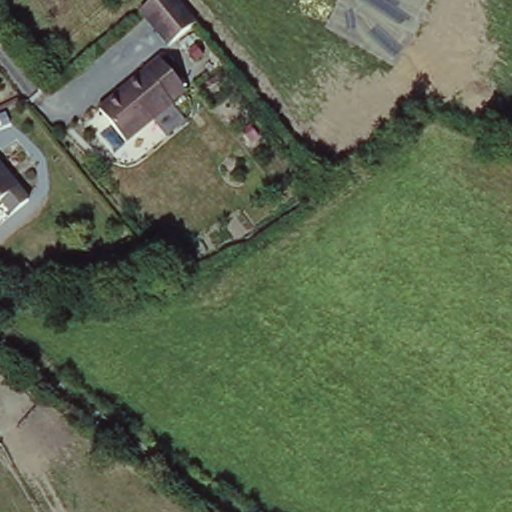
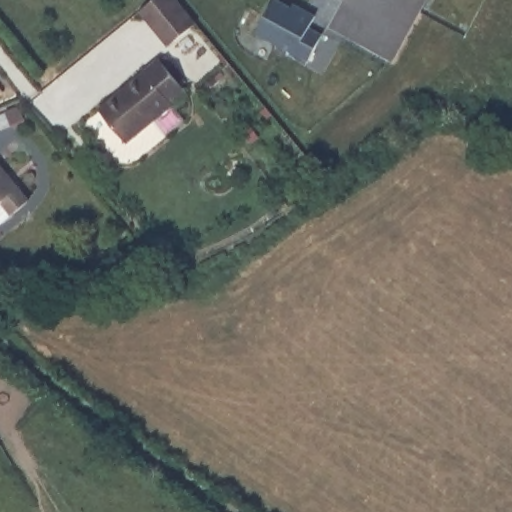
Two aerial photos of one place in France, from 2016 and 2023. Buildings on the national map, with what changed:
unchanged [(140,15),(157,0),(178,0),(196,21),(169,44),(140,15)]
new [(292,8),(294,4),(316,17),(310,28),(322,35),(308,62),(295,54),(256,34),(274,0),(278,0),(292,8)]
unchanged [(157,51),(176,73),(171,78),(183,91),(125,142),(97,111),(157,51)]
unchanged [(17,185),(0,200),(0,166),(17,185)]

